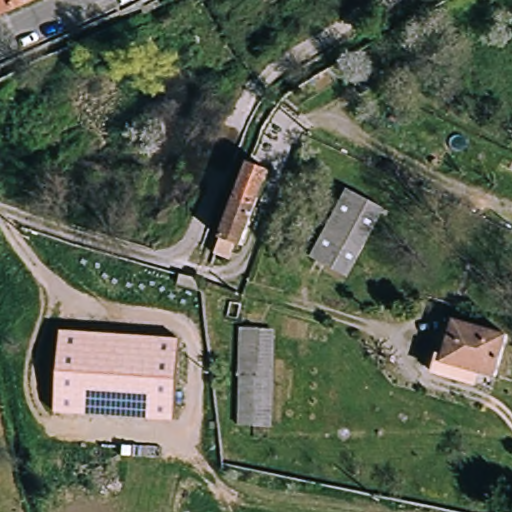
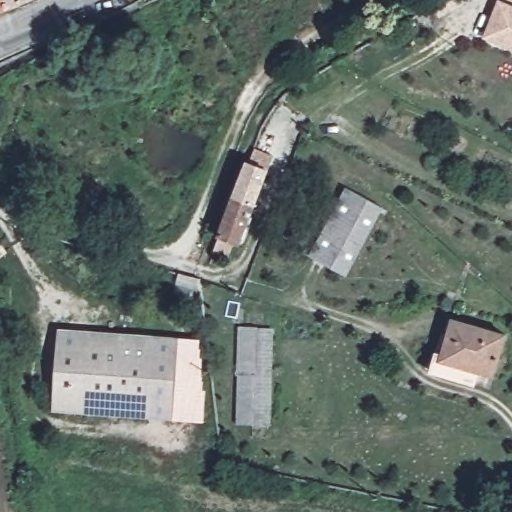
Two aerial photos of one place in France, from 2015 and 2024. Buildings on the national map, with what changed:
unchanged [(0,0),(6,0),(12,12),(0,18),(0,0)]
unchanged [(6,0),(35,0),(12,12),(6,0)]
new [(482,38),(497,1),(512,7),(512,50),(482,38)]
unchanged [(249,161),(267,168),(255,200),(240,245),(221,237),(237,194),(249,161)]
unchanged [(347,191),(385,207),(355,271),(320,256),(347,191)]
unchanged [(183,277),(192,279),(199,278),(202,276),(205,296),(177,289),(177,275),(183,277)]
unchanged [(500,332),(486,379),(424,357),(432,330),(439,331),(444,313),(500,332)]
unchanged [(174,420),(55,413),(60,330),(180,339),(174,420)]
unchanged [(275,332),(268,426),(237,424),(245,330),(275,332)]

